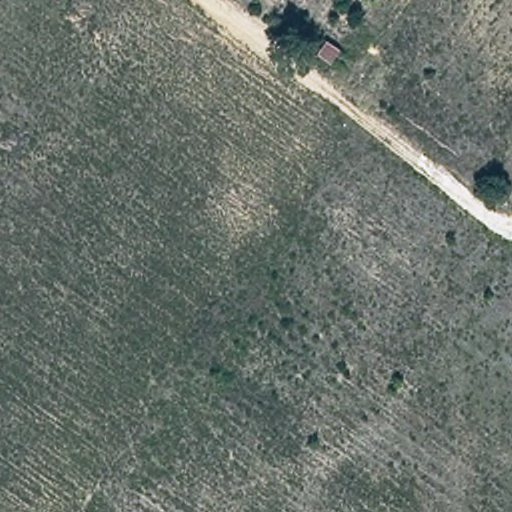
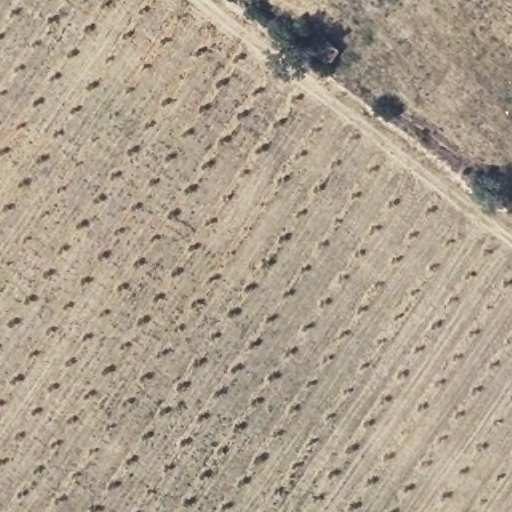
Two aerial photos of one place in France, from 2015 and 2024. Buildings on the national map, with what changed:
unchanged [(326,65),(312,55),(320,41),(336,50),(326,65)]

